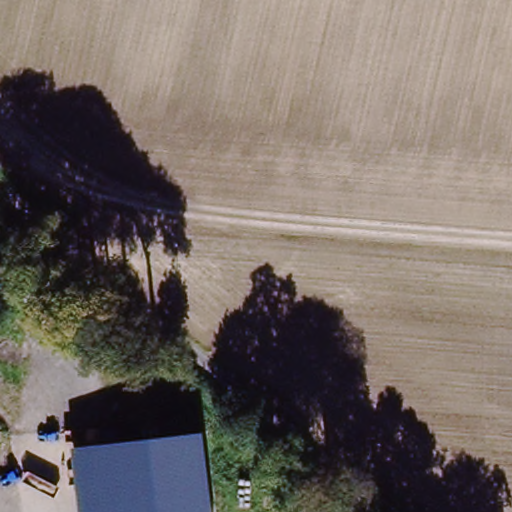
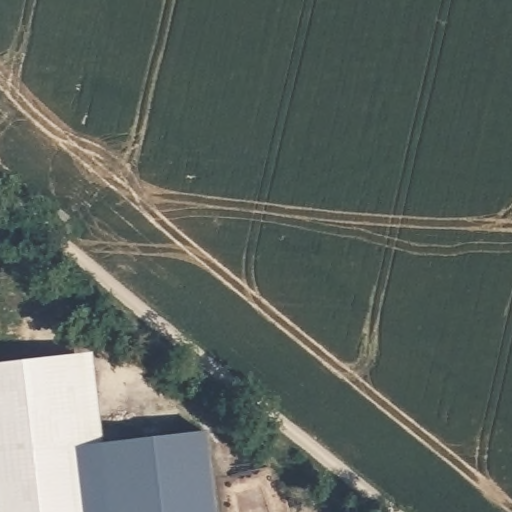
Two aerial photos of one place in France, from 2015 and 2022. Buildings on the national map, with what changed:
new [(81,512),(0,512),(0,360),(63,353),(74,448),(81,512)]
new [(104,444),(74,448),(64,357),(91,353),(104,444)]
unchanged [(74,448),(204,434),(214,512),(81,512),(74,448)]

